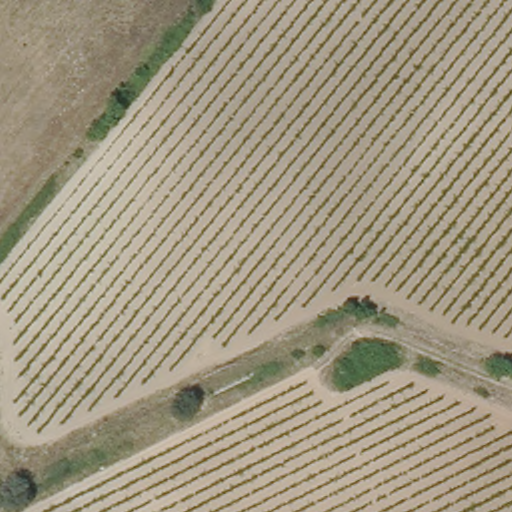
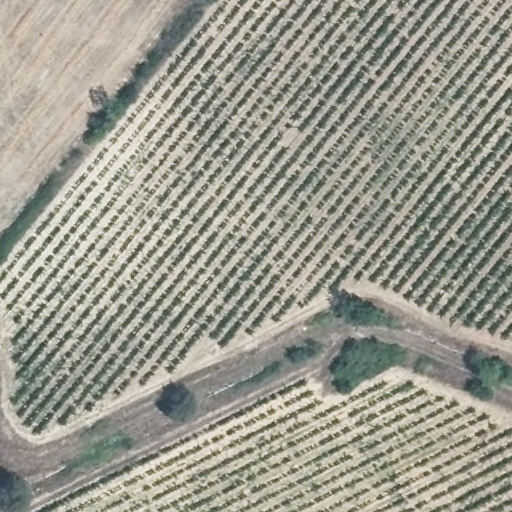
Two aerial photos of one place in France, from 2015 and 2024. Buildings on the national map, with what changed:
[]

